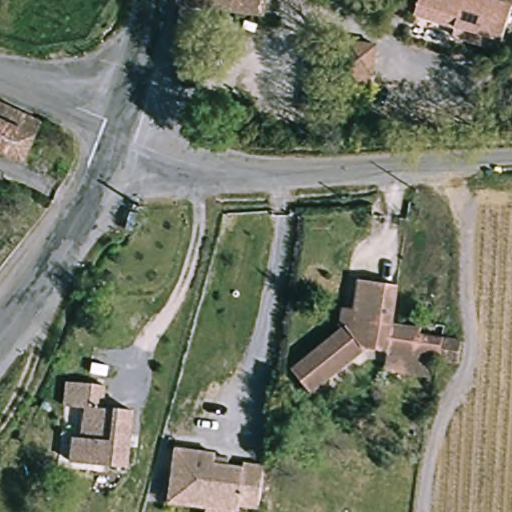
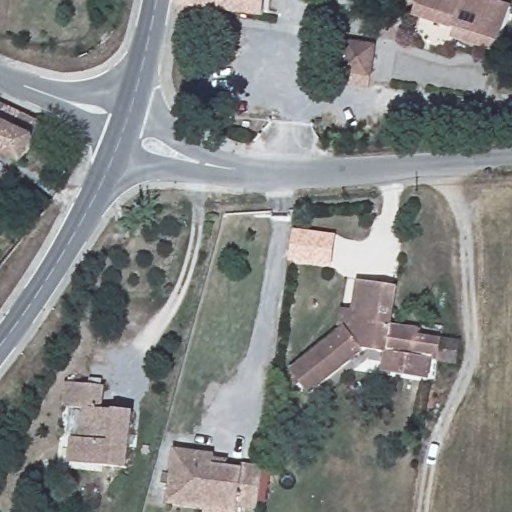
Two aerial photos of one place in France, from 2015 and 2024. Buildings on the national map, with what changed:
unchanged [(182,0),(268,0),(265,21),(196,10),(190,47),(190,49),(175,45),(182,0)]
unchanged [(455,28),(413,15),(418,0),(488,0),(510,7),(500,42),(497,50),(452,36),(455,28)]
unchanged [(350,45),(379,50),(372,87),(343,82),(350,45)]
unchanged [(2,112),(0,118),(0,112),(2,112)]
unchanged [(2,112),(40,130),(20,170),(0,160),(0,118),(2,112)]
new [(332,268),(290,262),(295,229),(337,234),(332,268)]
unchanged [(398,290),(393,322),(392,328),(417,333),(416,340),(439,344),(457,347),(455,364),(436,361),(377,351),(368,350),(311,395),(295,373),(358,323),(359,319),(340,316),(342,300),(360,303),(363,285),(398,290)]
unchanged [(68,449),(70,441),(71,441),(77,442),(81,410),(80,410),(60,407),(63,382),(87,385),(105,386),(103,408),(133,412),(128,470),(67,464),(68,449)]
unchanged [(204,506),(165,500),(172,446),(212,452),(211,462),(240,466),(240,461),(260,465),(258,484),(255,506),(236,504),(235,510),(235,512),(203,512),(204,506)]

